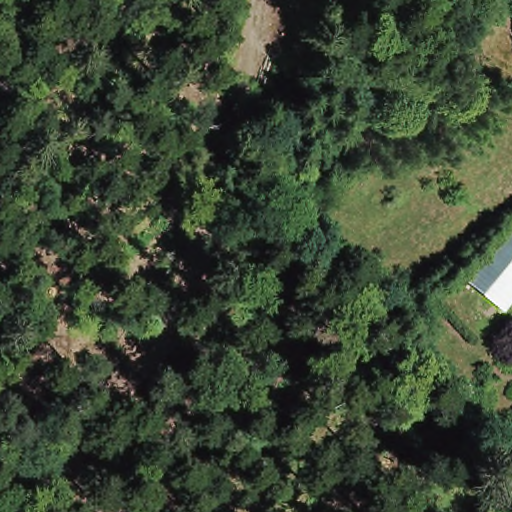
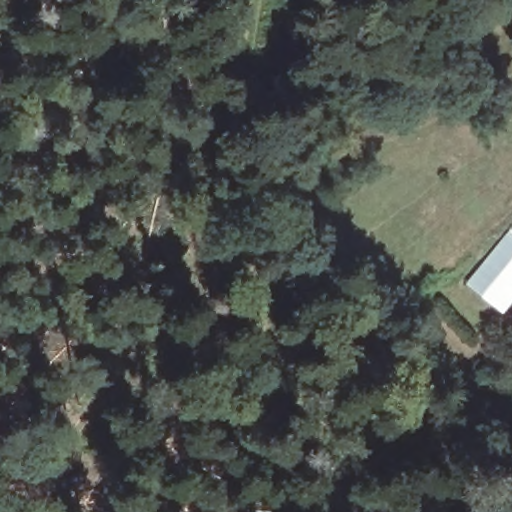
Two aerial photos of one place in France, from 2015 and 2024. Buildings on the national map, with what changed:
unchanged [(507,241),(512,245),(512,292),(505,300),(491,289),(478,277),(488,264),(507,241)]

